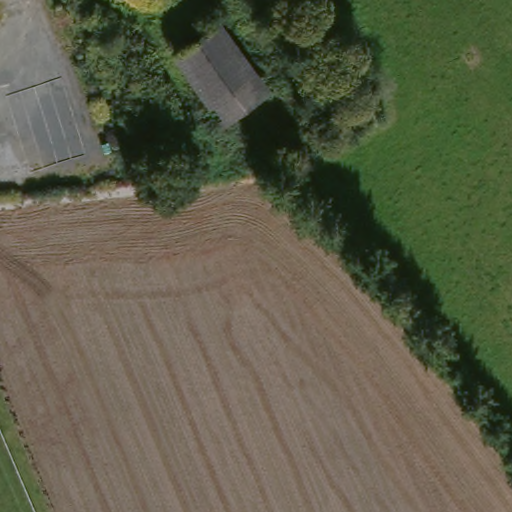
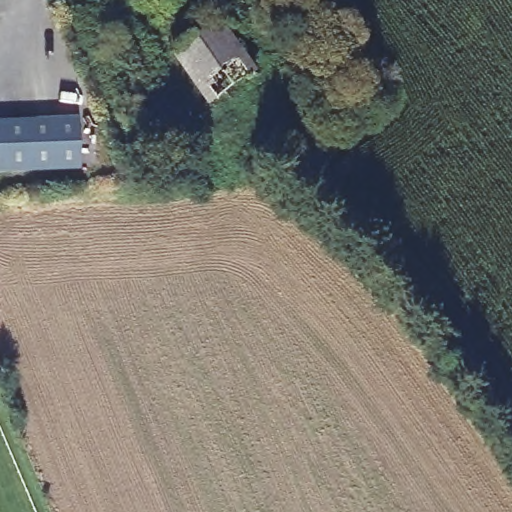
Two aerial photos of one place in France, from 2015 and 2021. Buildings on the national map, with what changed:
unchanged [(235,17),(272,95),(216,120),(179,41),(235,17)]
new [(79,170),(0,172),(0,120),(78,117),(79,170)]

